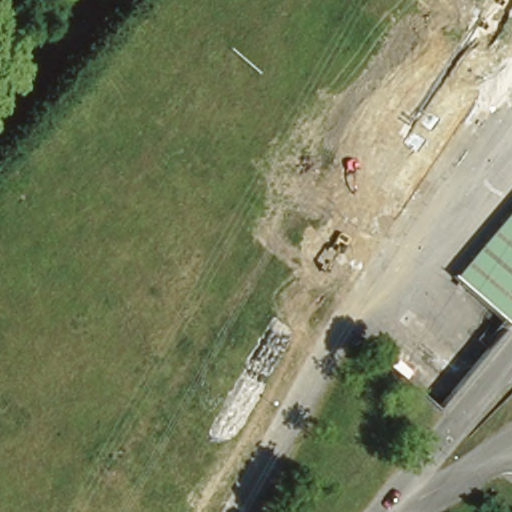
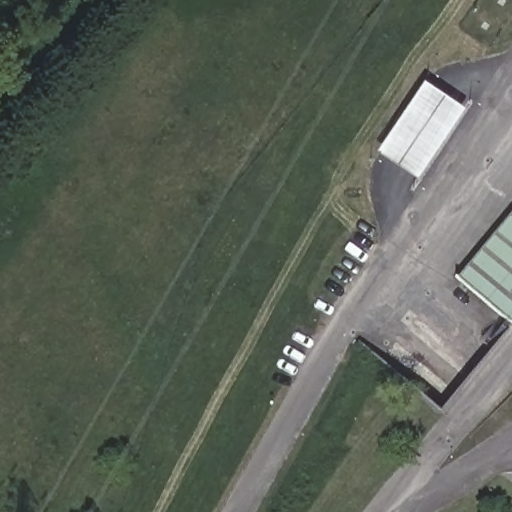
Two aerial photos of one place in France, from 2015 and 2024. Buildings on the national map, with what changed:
new [(417,180),(375,153),(423,82),(463,110),(417,180)]
unchanged [(456,279),(512,213),(512,317),(508,321),(456,279)]

